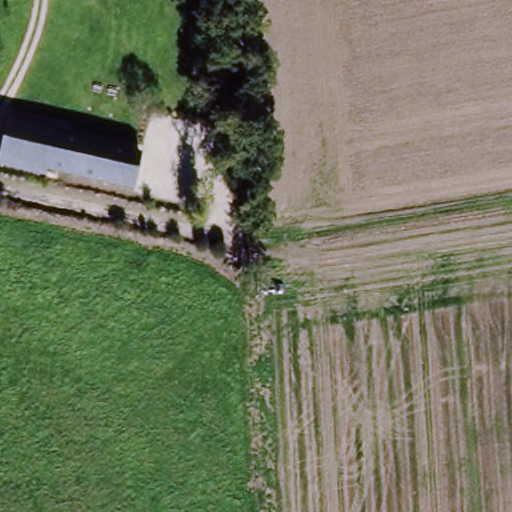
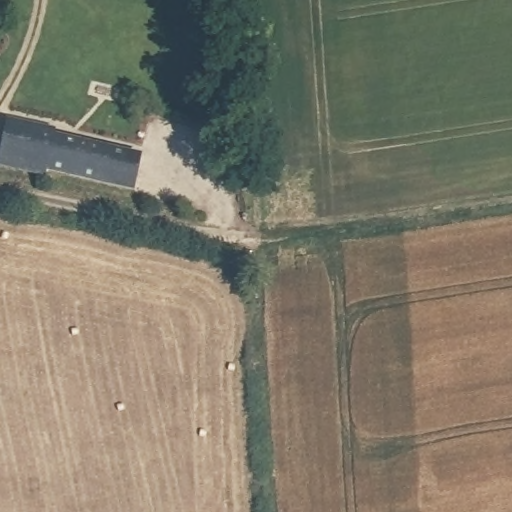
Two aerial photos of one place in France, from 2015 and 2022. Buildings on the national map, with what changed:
unchanged [(35,169),(0,160),(0,158),(13,119),(46,128),(45,133),(38,162),(35,169)]
unchanged [(144,186),(133,183),(38,162),(45,133),(139,158),(151,160),(144,186)]

